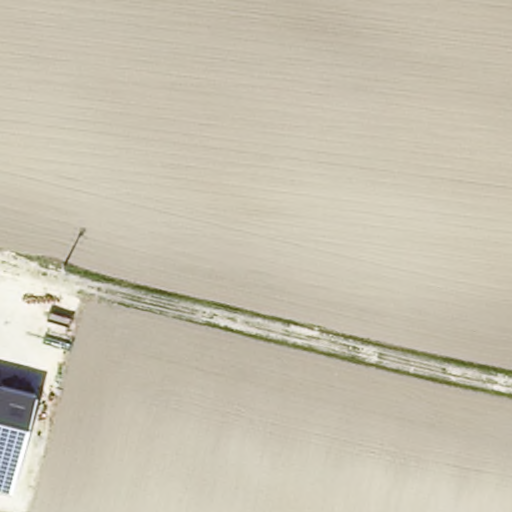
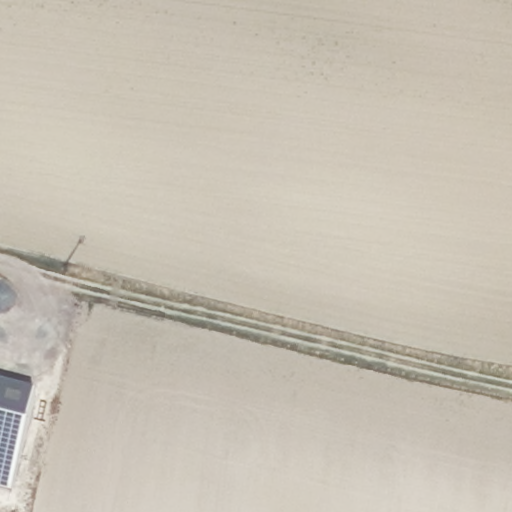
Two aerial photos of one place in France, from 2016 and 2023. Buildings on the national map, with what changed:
unchanged [(37,395),(12,494),(0,492),(0,386),(37,395)]

